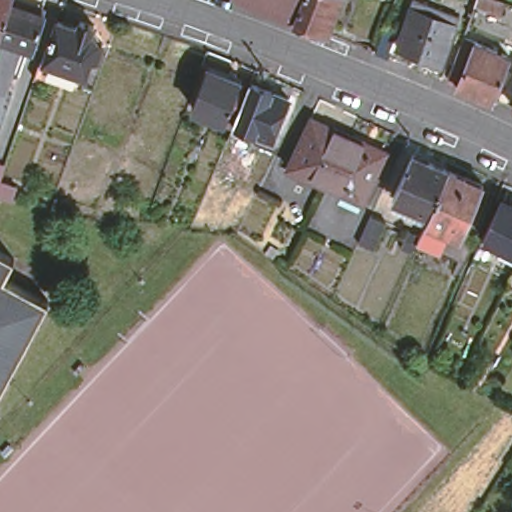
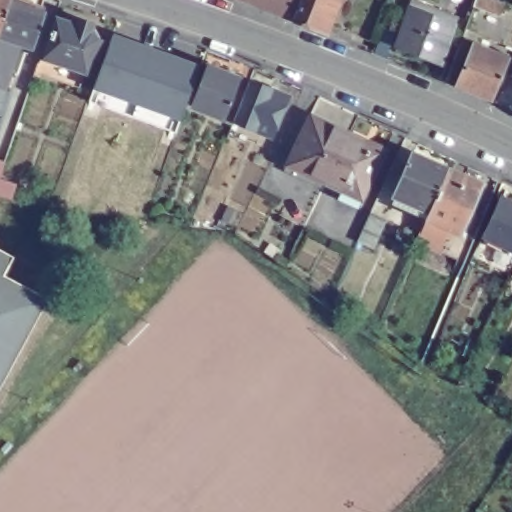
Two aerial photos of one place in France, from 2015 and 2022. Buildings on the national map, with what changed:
unchanged [(0,13),(0,0),(4,0),(0,13)]
unchanged [(4,0),(9,0),(38,10),(26,46),(12,41),(0,37),(0,13),(4,0)]
unchanged [(299,23),(241,0),(307,0),(299,23)]
unchanged [(307,0),(343,0),(329,35),(299,23),(307,0)]
unchanged [(503,20),(474,10),(476,0),(494,0),(508,5),(503,20)]
unchanged [(399,34),(409,9),(419,13),(422,5),(458,21),(439,66),(393,47),(388,61),(372,54),(383,27),(399,34)]
unchanged [(49,50),(62,11),(81,18),(84,11),(97,15),(96,21),(100,31),(106,33),(100,48),(96,47),(90,64),(84,80),(41,65),(47,49),(49,50)]
new [(190,107),(186,106),(181,121),(93,89),(115,33),(207,68),(190,107)]
unchanged [(12,41),(9,47),(19,51),(8,86),(0,83),(0,37),(12,41)]
unchanged [(461,43),(473,48),(508,61),(490,102),(456,88),(445,84),(453,63),(461,43)]
unchanged [(271,138),(233,123),(223,120),(190,107),(208,66),(240,78),(249,82),(288,98),(271,138)]
unchanged [(8,86),(0,111),(0,83),(8,86)]
unchanged [(316,180),(277,162),(299,116),(322,127),(324,122),(340,129),(316,180)]
unchanged [(351,197),(316,180),(340,129),(375,146),(351,197)]
unchanged [(392,192),(411,149),(446,166),(428,210),(392,192)]
unchanged [(428,210),(446,166),(482,181),(461,232),(425,216),(428,210)]
unchanged [(10,182),(5,196),(0,194),(0,179),(10,182)]
unchanged [(501,199),(512,204),(512,252),(484,238),(501,199)]
unchanged [(385,222),(372,250),(357,243),(369,216),(385,222)]
unchanged [(408,228),(418,233),(425,216),(461,232),(474,237),(465,261),(415,240),(411,249),(400,244),(408,228)]
unchanged [(12,258),(2,276),(0,275),(0,251),(12,258)]
unchanged [(2,276),(44,298),(0,382),(0,275),(2,276)]

